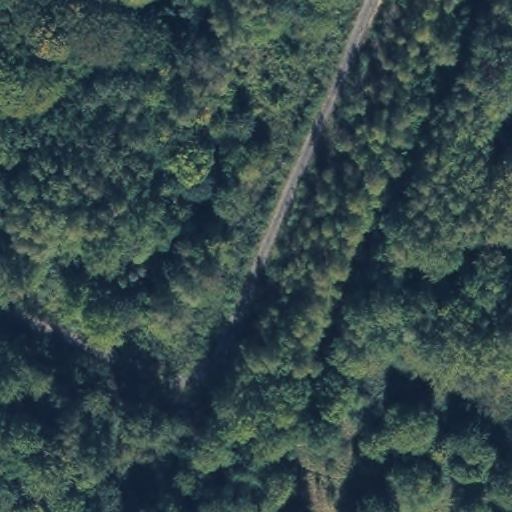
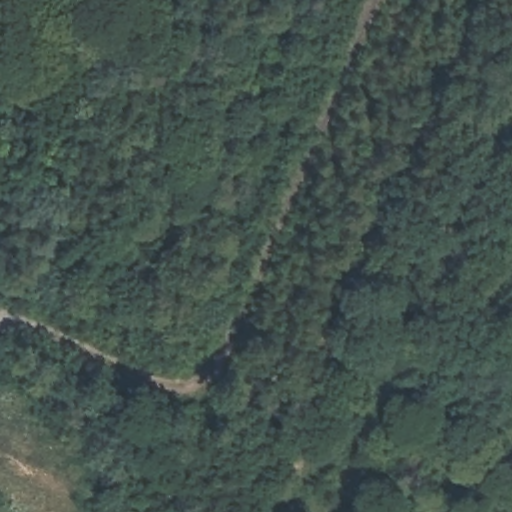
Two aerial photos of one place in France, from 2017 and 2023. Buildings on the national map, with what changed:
[]

